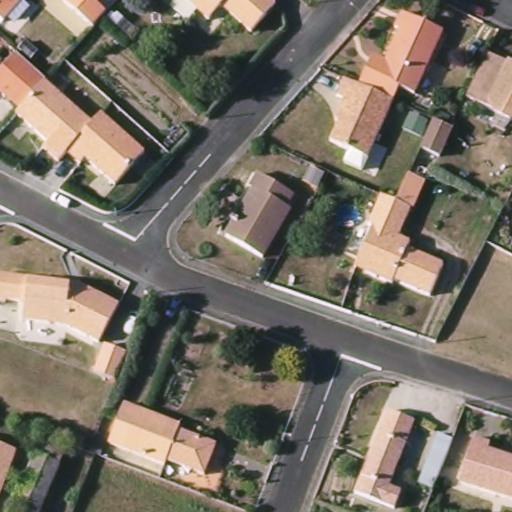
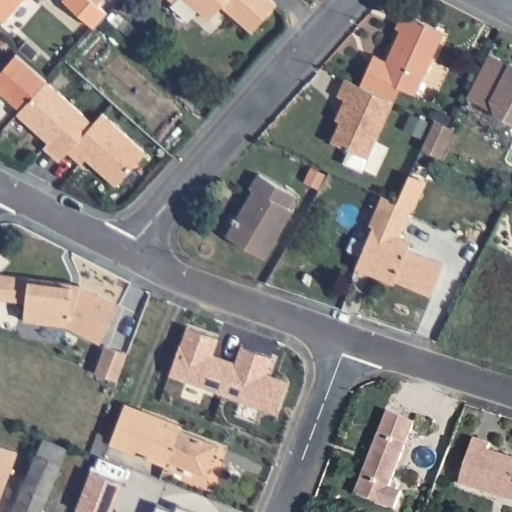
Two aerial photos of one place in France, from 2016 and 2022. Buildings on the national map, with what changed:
unchanged [(25,0),(5,22),(0,18),(0,0),(25,0)]
unchanged [(110,10),(102,18),(99,22),(96,26),(67,0),(114,0),(117,2),(110,10)]
unchanged [(169,0),(179,0),(175,4),(169,0)]
unchanged [(255,34),(222,7),(211,22),(185,0),(272,0),(278,6),(255,34)]
unchanged [(414,99),(400,93),(396,104),(395,103),(362,89),(375,58),(387,64),(400,34),(395,32),(402,16),(443,36),(414,99)]
unchanged [(0,97),(0,79),(17,59),(45,84),(44,84),(40,89),(19,113),(0,97)]
unchanged [(508,62),(512,64),(512,119),(486,106),(508,62)]
unchanged [(352,85),(362,89),(395,103),(371,159),(334,144),(351,104),(338,99),(346,83),(352,85)]
unchanged [(115,185),(84,156),(77,162),(67,151),(57,160),(19,113),(40,89),(44,84),(91,121),(99,112),(147,153),(115,185)]
unchanged [(418,154),(431,126),(448,133),(450,134),(437,162),(418,154)]
unchanged [(229,235),(257,189),(252,186),(261,172),(293,194),(287,205),(291,208),(261,255),(229,235)]
unchanged [(411,243),(408,251),(444,267),(430,298),(394,283),(392,287),(366,275),(369,268),(358,263),(373,229),(369,228),(382,197),(396,203),(407,177),(426,184),(413,211),(412,211),(400,239),(411,243)]
unchanged [(70,314),(27,308),(29,290),(0,287),(0,280),(2,262),(82,272),(122,293),(102,331),(70,314)]
new [(186,327),(217,337),(213,354),(236,362),(241,346),(272,358),(267,374),(288,382),(277,413),(169,374),(186,327)]
unchanged [(120,370),(98,361),(109,333),(131,341),(120,370)]
unchanged [(182,429),(182,435),(219,449),(207,479),(170,464),(168,469),(112,447),(127,408),(182,429)]
unchanged [(386,423),(413,434),(395,481),(407,487),(401,503),(362,488),(386,423)]
unchanged [(495,443),(493,450),(512,456),(512,498),(463,483),(478,438),(495,443)]
unchanged [(20,454),(0,507),(0,447),(20,454)]
unchanged [(37,453),(62,463),(43,512),(14,512),(37,453)]
new [(92,470),(125,482),(115,510),(114,512),(90,512),(79,507),(82,498),(92,470)]
new [(159,503),(177,510),(179,503),(201,512),(156,512),(159,503)]

